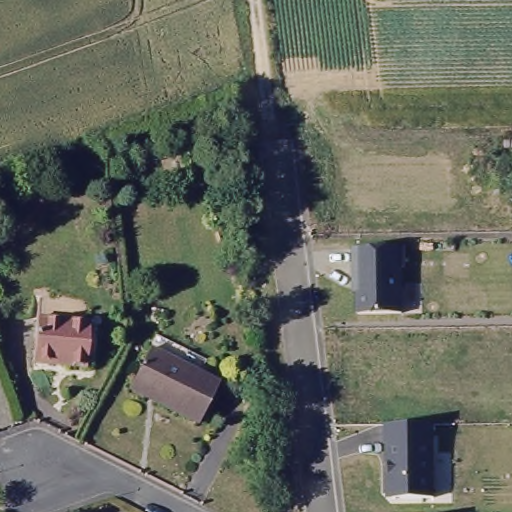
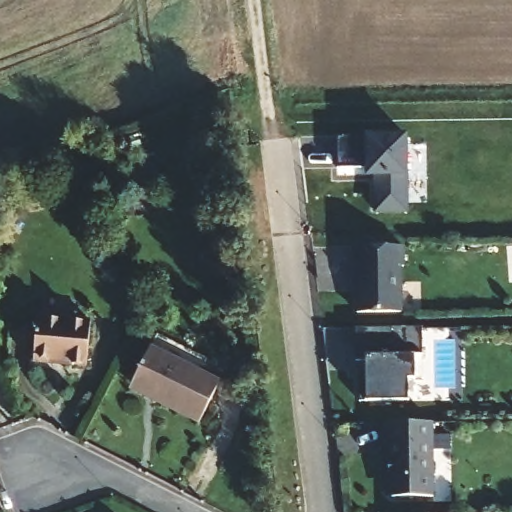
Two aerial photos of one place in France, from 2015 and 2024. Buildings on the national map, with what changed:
new [(374,215),(373,178),(365,178),(365,167),(338,167),(338,137),(365,135),(408,134),(408,177),(409,214),(374,215)]
unchanged [(413,242),(405,313),(357,311),(358,246),(413,242)]
unchanged [(38,316),(89,321),(86,366),(33,361),(38,316)]
new [(423,327),(422,355),(415,356),(415,377),(408,377),(408,399),(365,399),(365,359),(356,359),(356,327),(423,327)]
unchanged [(132,382),(152,346),(219,380),(198,419),(156,397),(131,385),(132,382)]
unchanged [(432,422),(435,498),(387,499),(383,423),(432,422)]

